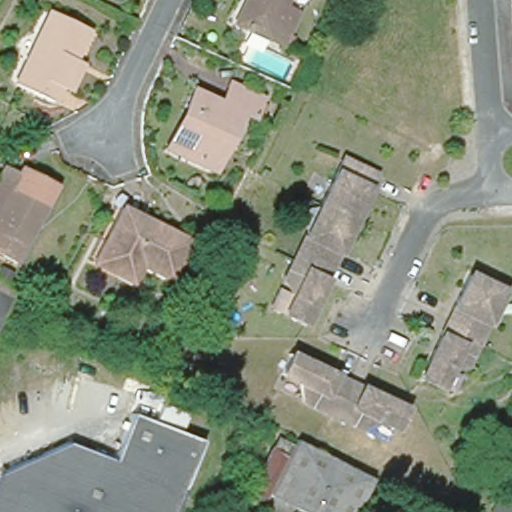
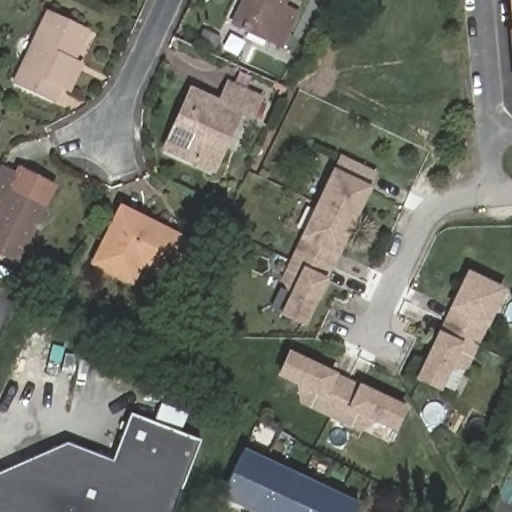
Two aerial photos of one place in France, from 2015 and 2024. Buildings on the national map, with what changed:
unchanged [(290,11),(305,18),(288,52),(240,30),(255,0),(295,0),(290,11)]
unchanged [(512,95),(504,0),(512,0),(512,95)]
unchanged [(74,99),(66,95),(58,112),(18,93),(54,17),(95,35),(81,64),(87,68),(74,99)]
unchanged [(182,110),(190,93),(216,105),(225,86),(259,101),(249,121),(239,116),(210,176),(193,167),(162,153),(182,110)]
unchanged [(305,326),(286,317),(295,298),(287,281),(343,161),(375,176),(350,232),(306,326),(305,326)]
unchanged [(2,176),(16,183),(19,177),(55,194),(18,273),(0,264),(0,181),(2,176)]
unchanged [(114,279),(95,270),(123,211),(186,241),(166,283),(139,270),(131,287),(114,279)]
unchanged [(505,296),(471,371),(453,375),(444,394),(424,385),(473,281),(505,296)]
unchanged [(410,411),(401,430),(381,421),(364,430),(307,404),(302,386),(282,377),(292,357),(410,411)]
unchanged [(68,441),(114,460),(132,414),(203,444),(176,512),(0,512),(0,470),(68,441)]
new [(350,512),(255,512),(219,495),(242,448),(355,498),(350,512)]
demolished [(293,448),(369,487),(366,492),(357,512),(279,512),(266,505),(293,448)]
demolished [(271,462),(275,452),(285,456),(258,512),(242,512),(267,461),(271,462)]

